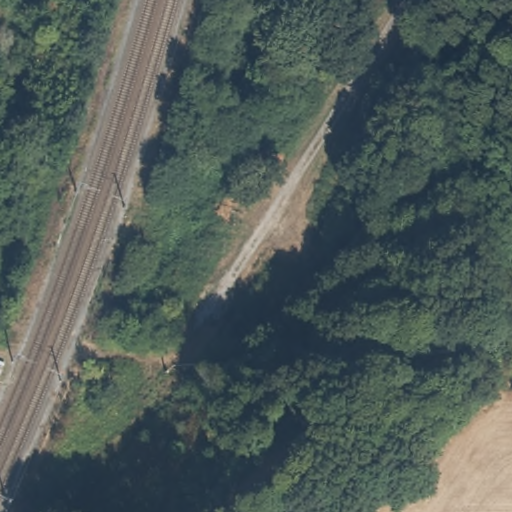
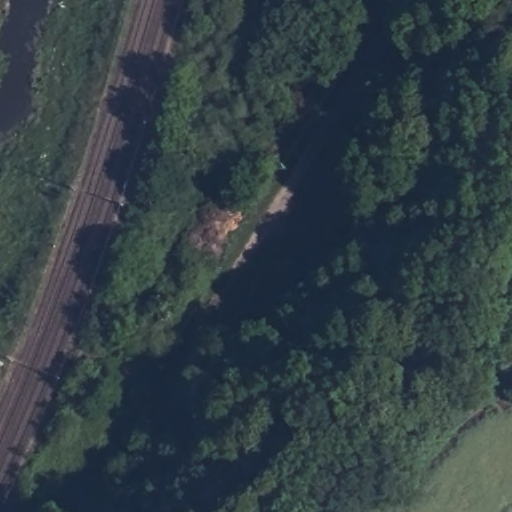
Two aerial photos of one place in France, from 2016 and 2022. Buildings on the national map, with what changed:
unchanged [(94,430),(59,417),(69,392),(104,405),(94,430)]

